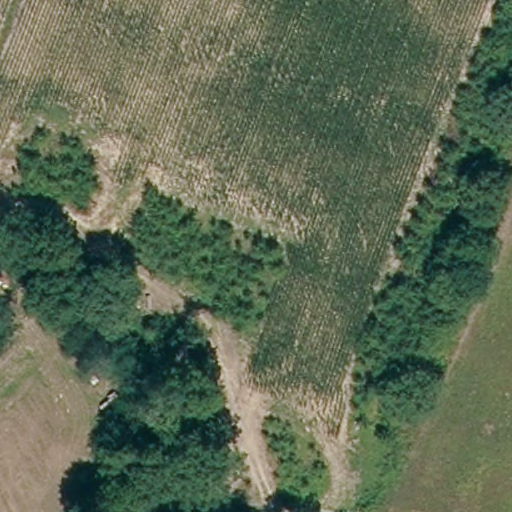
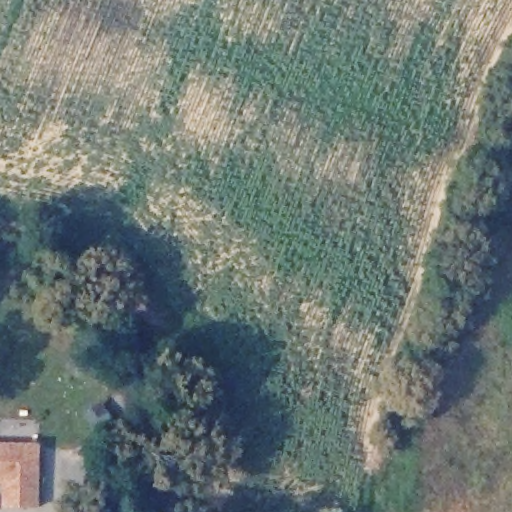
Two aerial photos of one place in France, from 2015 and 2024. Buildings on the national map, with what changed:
new [(3,510),(4,487),(0,486),(0,443),(40,443),(39,510),(3,510)]

